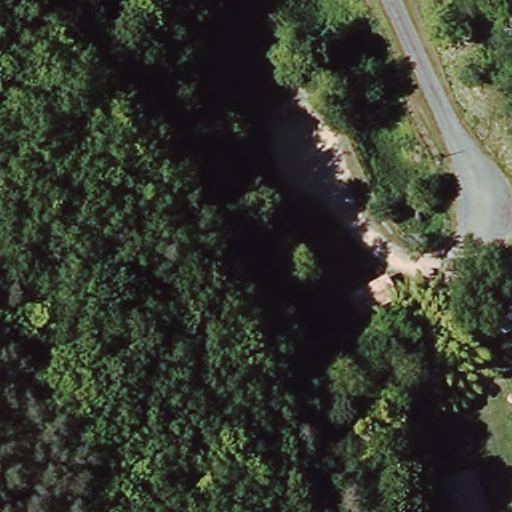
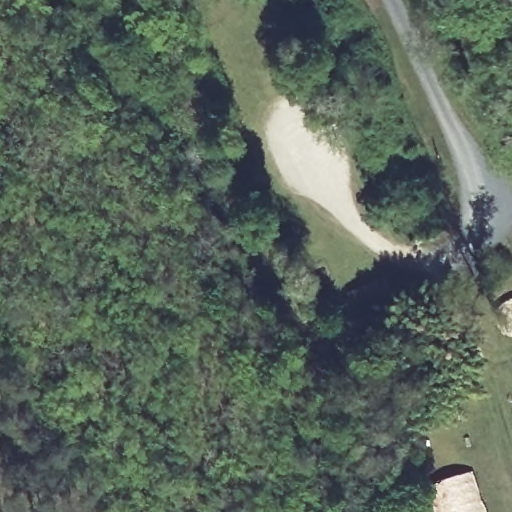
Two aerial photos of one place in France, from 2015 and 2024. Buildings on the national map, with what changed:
unchanged [(405,301),(365,324),(353,295),(394,274),(405,301)]
unchanged [(361,433),(334,446),(319,411),(344,398),(361,433)]
new [(485,512),(437,512),(429,485),(472,470),(485,512)]

